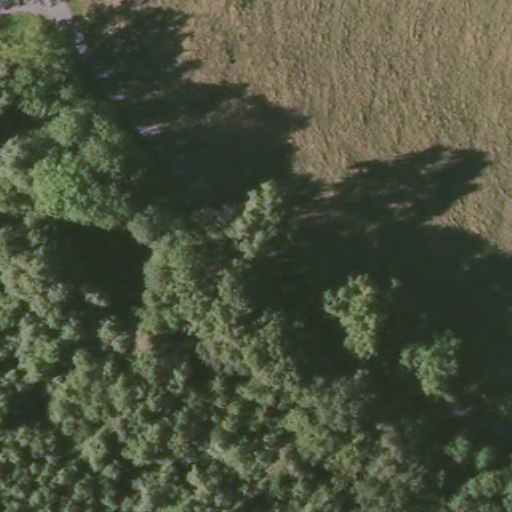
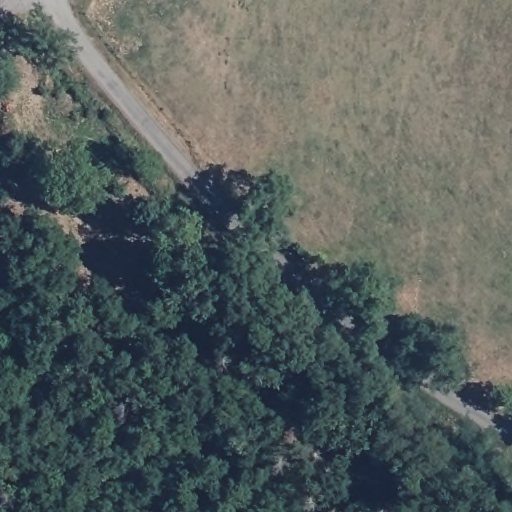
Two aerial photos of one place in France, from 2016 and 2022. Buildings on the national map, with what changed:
[]

